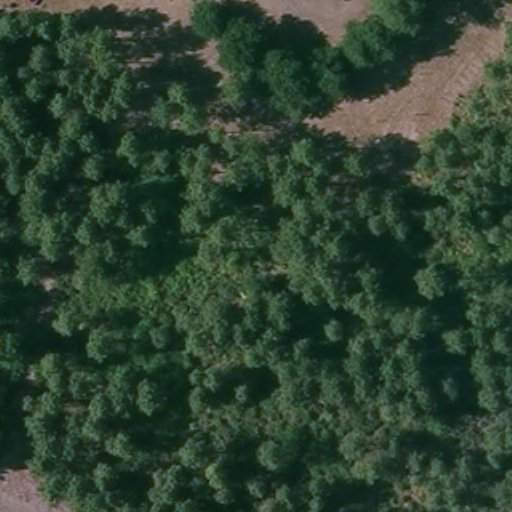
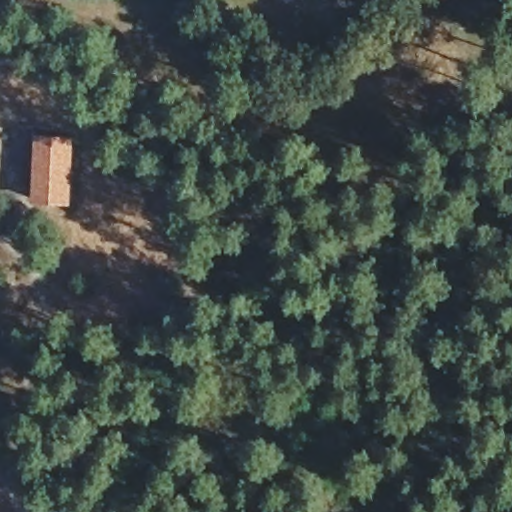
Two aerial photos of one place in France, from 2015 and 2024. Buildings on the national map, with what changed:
new [(33,132),(76,135),(72,206),(30,204),(33,132)]

